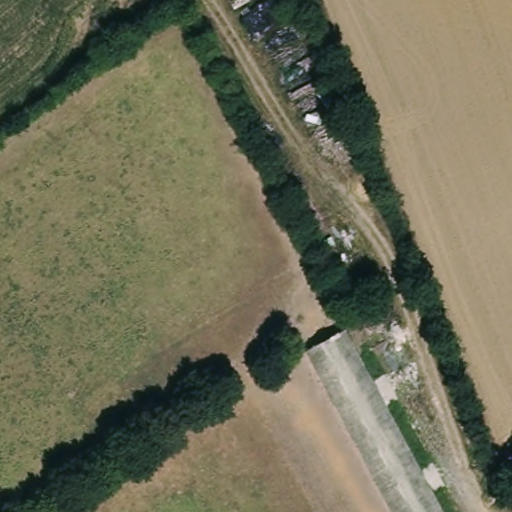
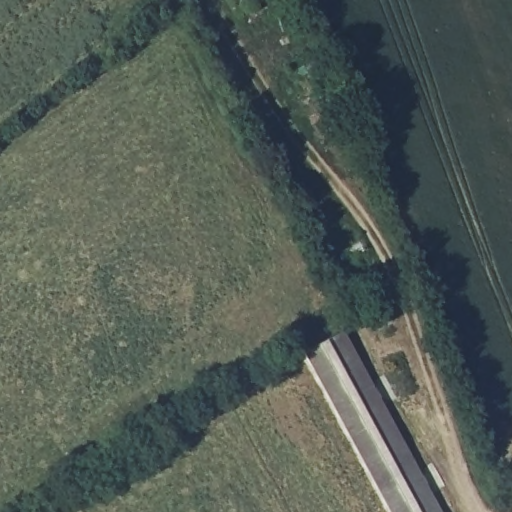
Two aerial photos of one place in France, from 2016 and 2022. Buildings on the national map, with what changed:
unchanged [(442,512),(390,512),(310,350),(351,327),(442,512)]

